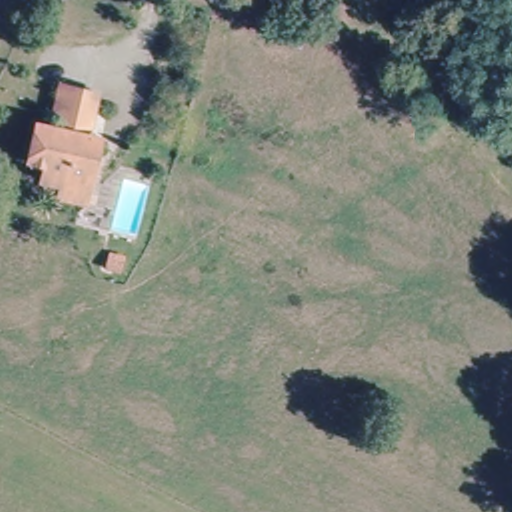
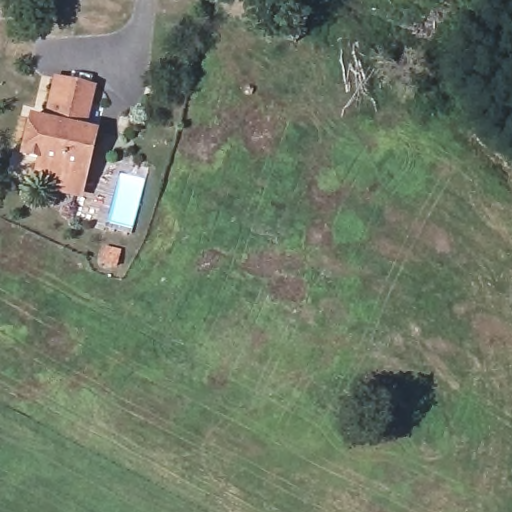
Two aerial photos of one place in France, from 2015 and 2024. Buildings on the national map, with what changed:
unchanged [(54,198),(56,181),(38,178),(41,162),(21,158),(28,119),(55,122),(56,111),(45,108),(49,74),(72,79),(90,81),(85,127),(96,129),(89,170),(83,202),(54,198)]
unchanged [(119,238),(118,254),(104,251),(104,235),(119,238)]

